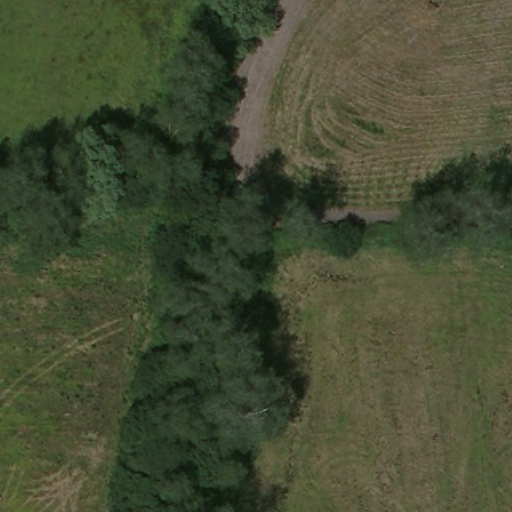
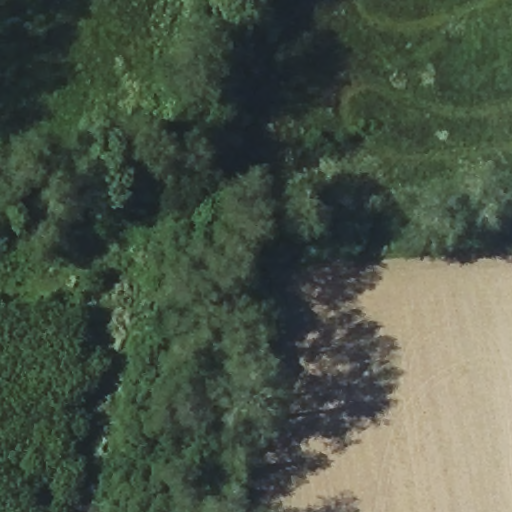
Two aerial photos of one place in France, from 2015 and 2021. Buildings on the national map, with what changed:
[]

